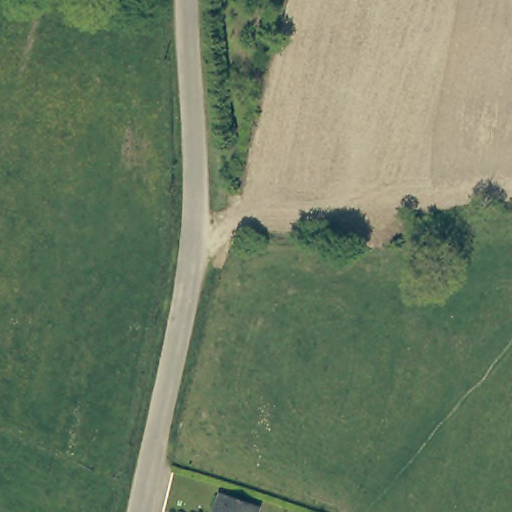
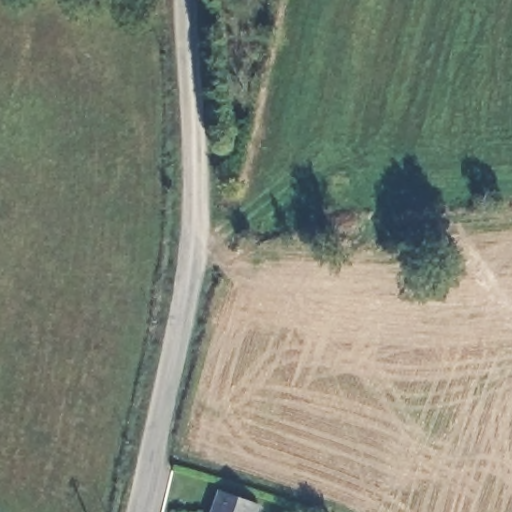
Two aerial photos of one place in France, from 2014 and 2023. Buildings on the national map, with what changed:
unchanged [(220,483),(258,496),(252,512),(210,512),(220,483)]

